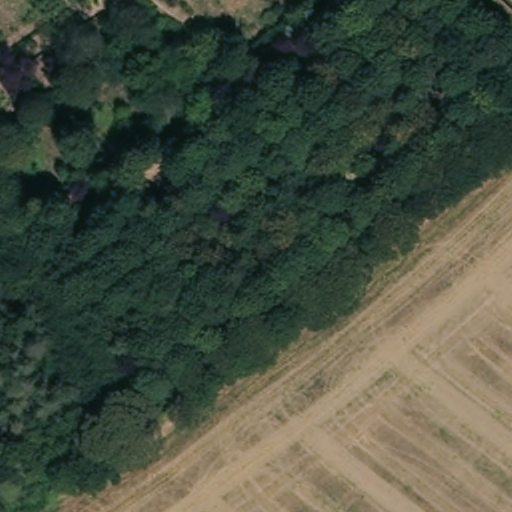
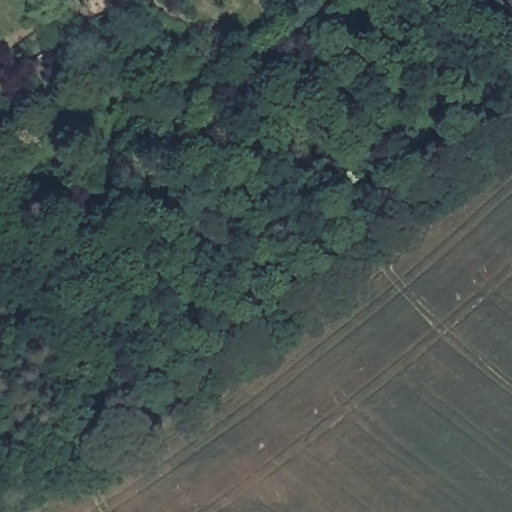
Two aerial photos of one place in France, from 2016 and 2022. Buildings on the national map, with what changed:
unchanged [(122,32),(150,14),(160,30),(143,42),(135,47),(132,49),(122,32)]

